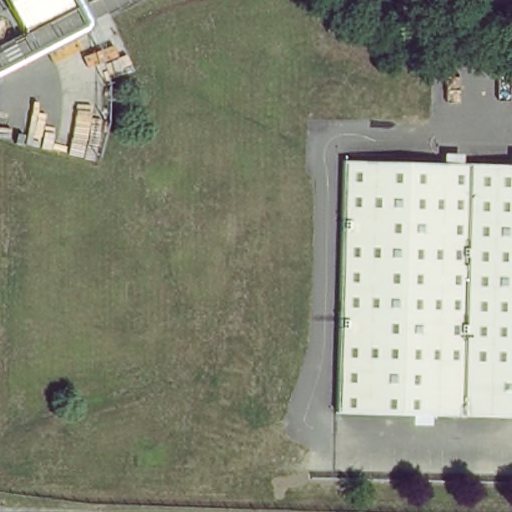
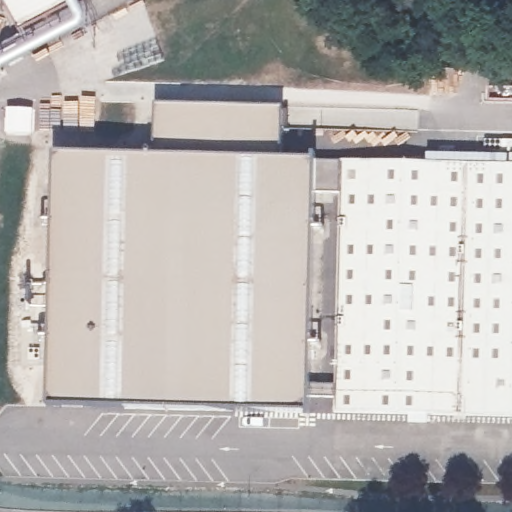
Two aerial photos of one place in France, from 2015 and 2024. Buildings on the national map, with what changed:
unchanged [(8,0),(82,0),(24,30),(8,0)]
new [(338,160),(338,193),(313,194),(308,413),(48,404),(53,154),(154,156),(156,105),(283,108),(286,159),(314,159),(338,160)]
unchanged [(337,414),(338,160),(432,163),(426,416),(337,414)]
unchanged [(512,164),(512,418),(426,416),(432,163),(512,164)]

